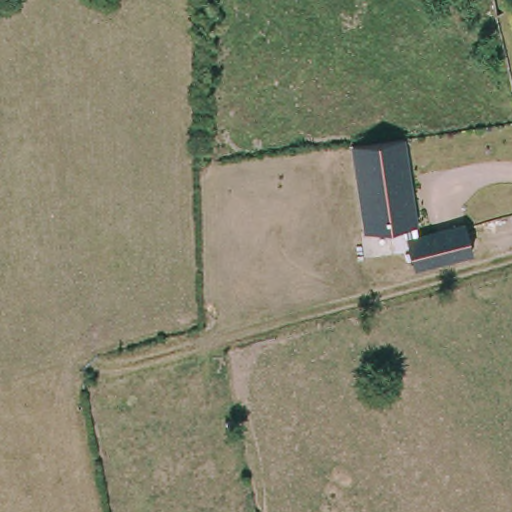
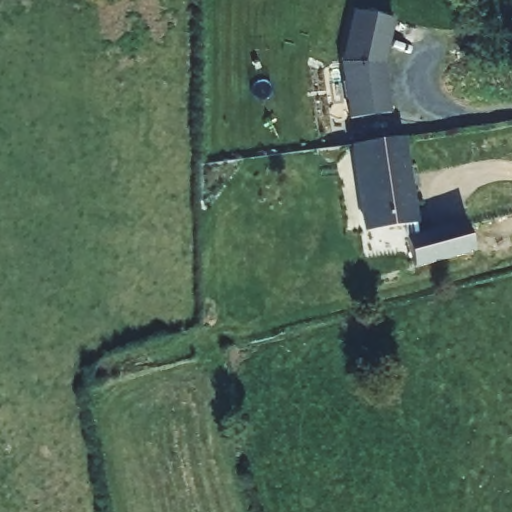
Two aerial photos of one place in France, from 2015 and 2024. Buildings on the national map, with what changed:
new [(350,120),(342,62),(355,11),(396,19),(385,64),(392,114),(350,120)]
unchanged [(350,144),(405,136),(417,224),(363,233),(350,144)]
unchanged [(465,221),(473,252),(413,267),(405,237),(465,221)]

